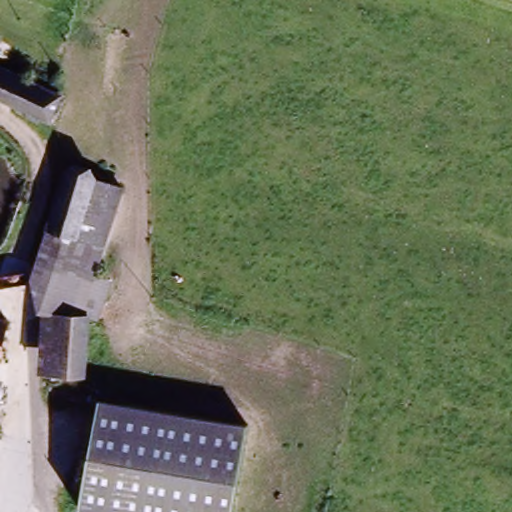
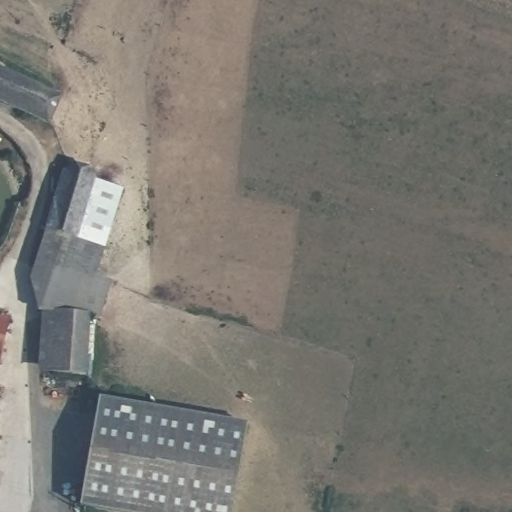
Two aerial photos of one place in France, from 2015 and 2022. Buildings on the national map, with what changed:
unchanged [(43,123),(0,102),(0,69),(57,97),(43,123)]
unchanged [(55,167),(82,174),(70,232),(40,223),(55,167)]
unchanged [(112,181),(98,236),(70,232),(82,174),(112,181)]
unchanged [(20,301),(40,223),(70,232),(52,307),(20,301)]
unchanged [(97,314),(85,312),(52,307),(70,232),(98,236),(88,272),(105,277),(97,314)]
unchanged [(85,312),(77,371),(47,368),(52,307),(85,312)]
unchanged [(0,336),(0,322),(2,323),(0,336)]
unchanged [(232,512),(124,512),(80,502),(102,398),(249,431),(232,512)]

